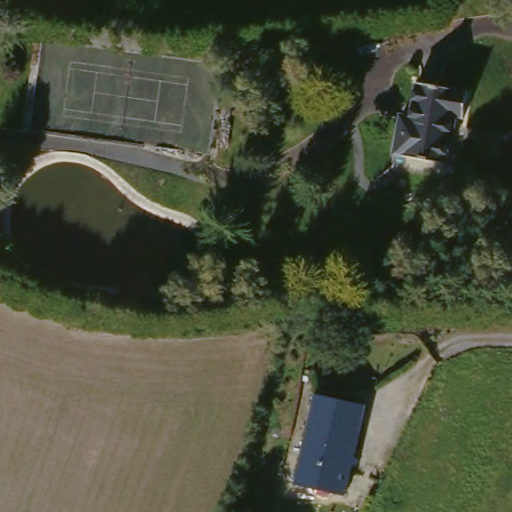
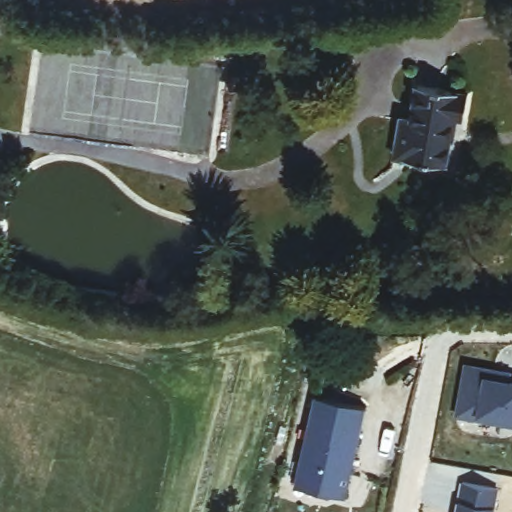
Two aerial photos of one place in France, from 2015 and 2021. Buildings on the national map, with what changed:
unchanged [(385,161),(390,122),(400,124),(405,91),(460,97),(456,122),(445,121),(439,169),(385,161)]
new [(507,373),(506,382),(512,382),(512,426),(498,424),(498,420),(477,417),(476,420),(455,417),(462,367),(491,371),(507,373)]
unchanged [(290,488),(306,398),(360,408),(343,498),(290,488)]
new [(496,491),(493,512),(457,512),(461,486),(496,491)]

